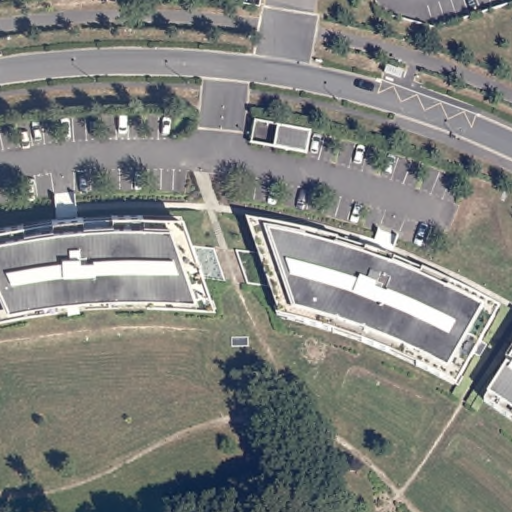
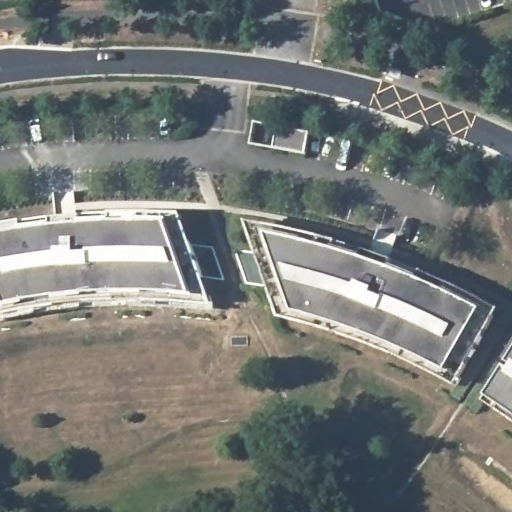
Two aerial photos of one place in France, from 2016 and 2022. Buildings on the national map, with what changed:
unchanged [(260,0),(259,5),(238,0),(239,0),(260,0)]
unchanged [(277,126),(309,132),(305,154),(273,147),(277,126)]
unchanged [(21,222),(50,218),(67,216),(80,215),(109,214),(126,214),(140,214),(179,215),(182,224),(208,298),(211,306),(172,303),(158,302),(141,302),(112,302),(96,303),(81,304),(52,306),(36,309),(22,311),(0,315),(0,226),(9,224),(21,222)]
unchanged [(443,380),(431,373),(415,366),(389,354),(374,348),(360,342),(358,341),(332,333),(317,328),(303,324),(279,318),(276,308),(249,231),(246,222),(278,228),(306,234),(322,238),(335,242),(364,250),(381,256),(393,261),(420,271),(436,278),(448,284),(485,303),(497,310),(493,317),(460,380),(456,387),(443,380)]
unchanged [(504,405),(489,395),(510,360),(512,361),(512,411),(504,405)]

